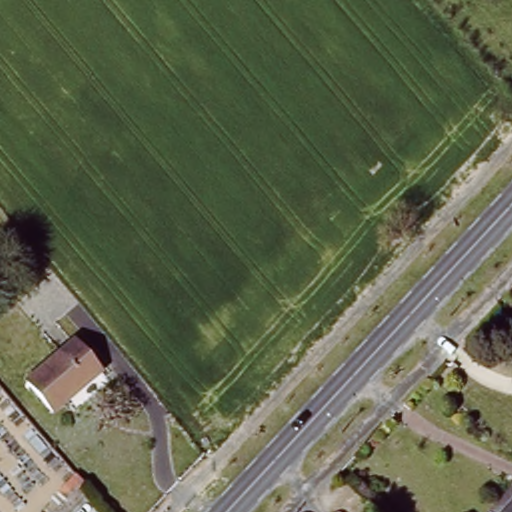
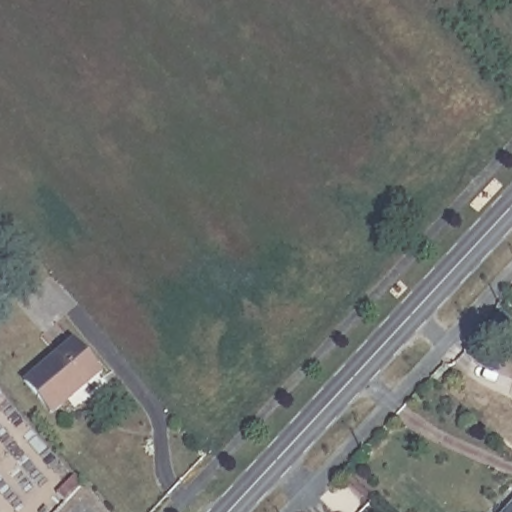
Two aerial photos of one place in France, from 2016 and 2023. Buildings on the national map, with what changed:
unchanged [(67,344),(94,375),(47,416),(20,384),(67,344)]
unchanged [(508,512),(512,508),(512,512),(508,512)]

